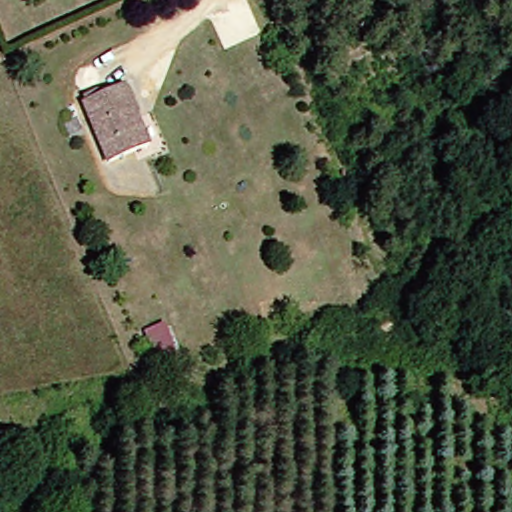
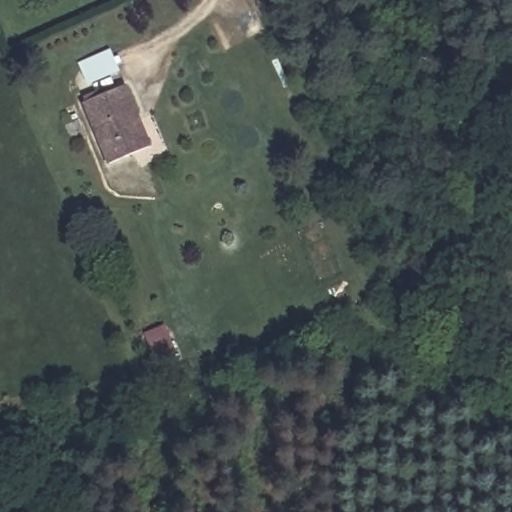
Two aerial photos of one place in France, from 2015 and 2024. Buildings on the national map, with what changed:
unchanged [(83,109),(123,92),(148,149),(110,168),(83,109)]

